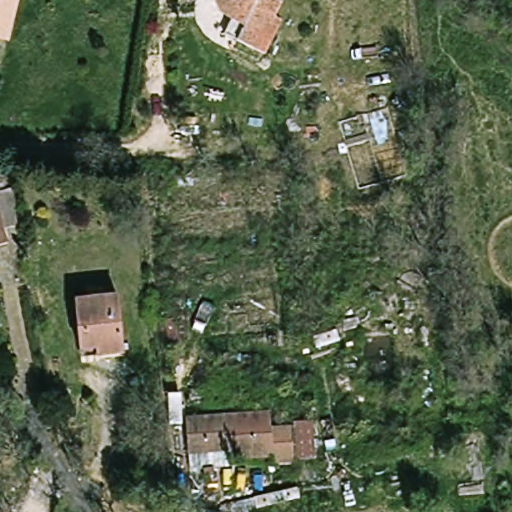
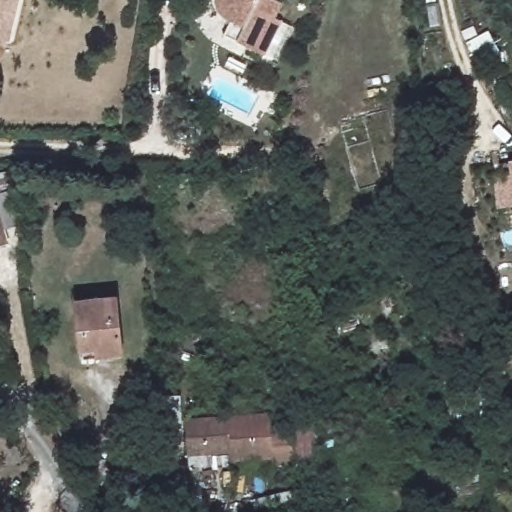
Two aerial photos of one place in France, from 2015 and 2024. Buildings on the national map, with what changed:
unchanged [(0,39),(0,0),(21,0),(10,41),(0,39)]
unchanged [(221,35),(226,22),(221,5),(220,0),(270,0),(279,5),(273,20),(278,24),(258,57),(221,35)]
new [(497,205),(494,175),(512,174),(511,161),(512,161),(512,204),(497,205)]
unchanged [(117,293),(126,345),(89,352),(79,300),(117,293)]
unchanged [(189,435),(188,415),(269,412),(269,423),(295,423),(298,461),(271,463),(271,455),(233,455),(233,446),(207,447),(189,447),(189,435)]

